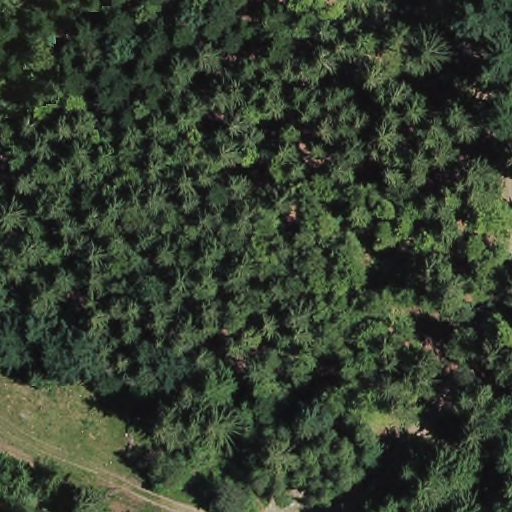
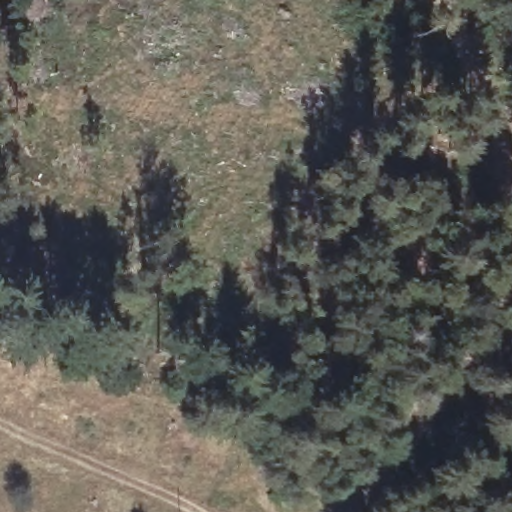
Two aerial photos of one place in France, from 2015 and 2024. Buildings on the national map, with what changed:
[]

